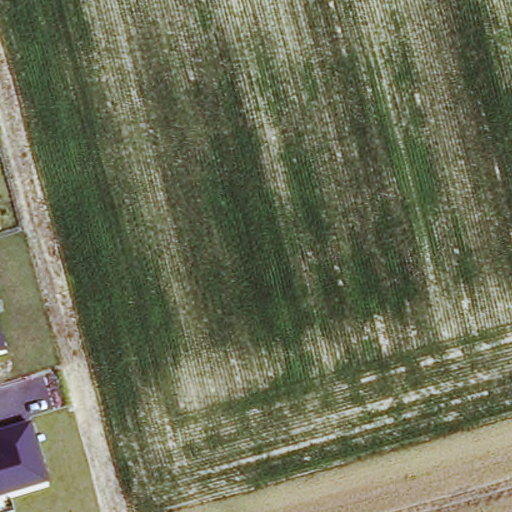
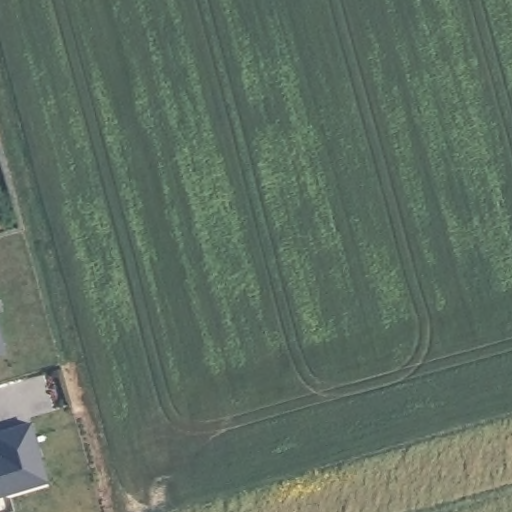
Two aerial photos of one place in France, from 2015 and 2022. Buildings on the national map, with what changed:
unchanged [(8,354),(0,357),(0,316),(8,354)]
unchanged [(32,425),(48,488),(0,502),(0,433),(32,425)]

